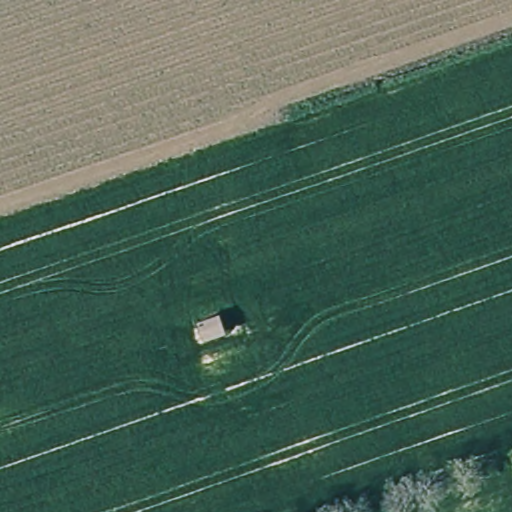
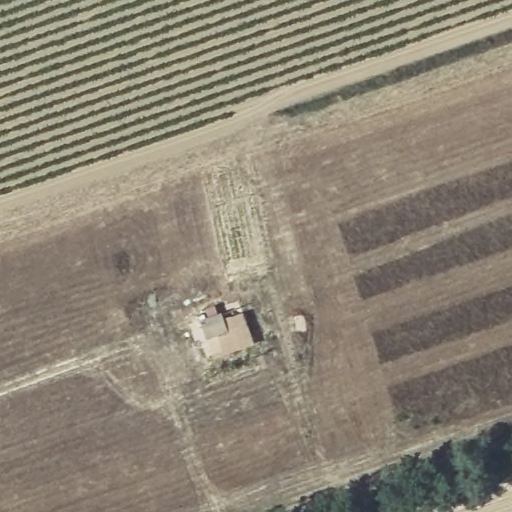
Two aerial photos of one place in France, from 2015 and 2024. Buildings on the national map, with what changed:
unchanged [(230,333),(207,340),(201,317),(224,311),(230,333)]

